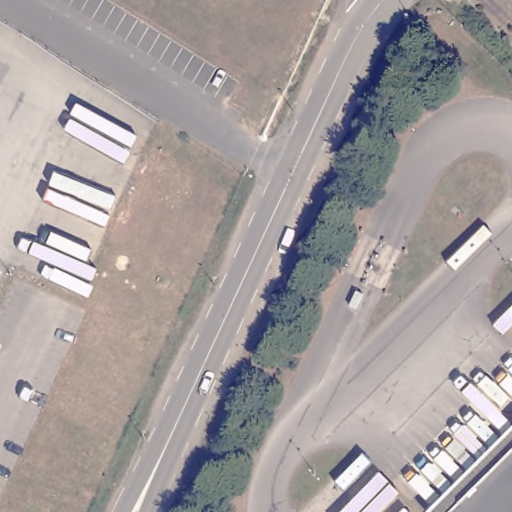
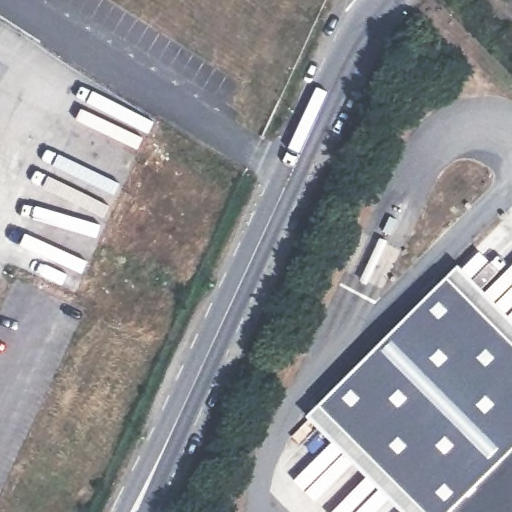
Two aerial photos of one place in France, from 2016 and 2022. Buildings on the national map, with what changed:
new [(512,322),(512,512),(397,512),(306,418),(457,268),(512,322)]
demolished [(512,450),(512,512),(452,512),(512,450)]

